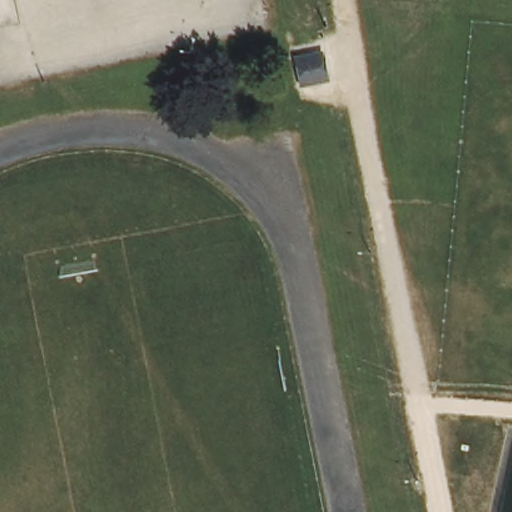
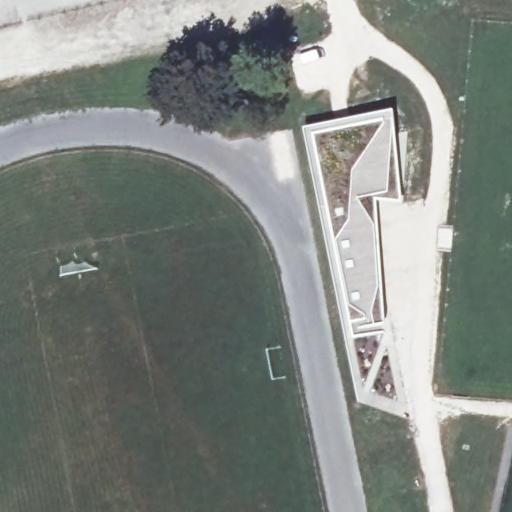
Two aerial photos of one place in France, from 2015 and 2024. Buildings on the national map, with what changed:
unchanged [(321,78),(301,82),(300,72),(297,58),(317,54),(319,65),(321,78)]
new [(307,105),(392,88),(400,117),(399,180),(378,184),(388,303),(345,312),(307,105)]

